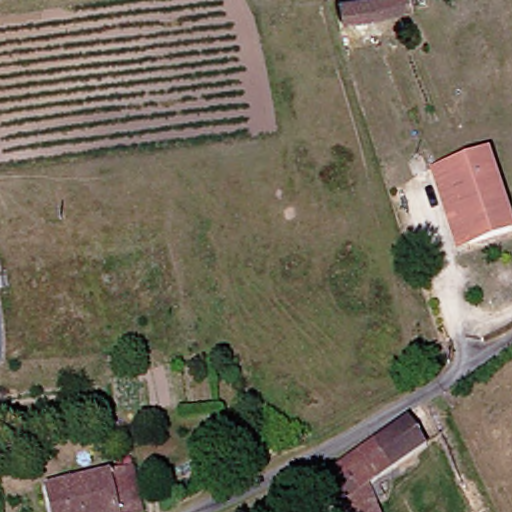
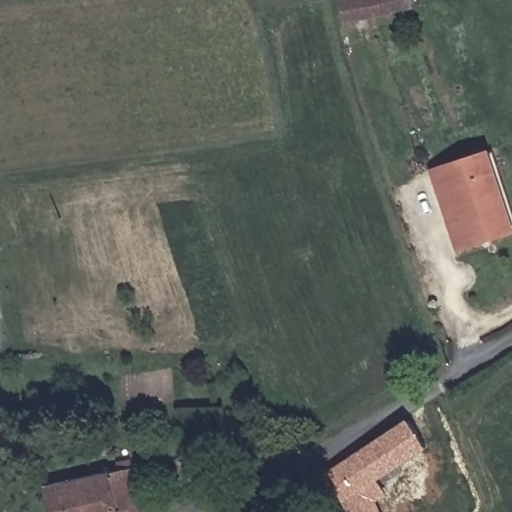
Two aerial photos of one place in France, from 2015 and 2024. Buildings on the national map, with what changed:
unchanged [(413,11),(348,25),(342,4),(362,0),(410,0),(413,11)]
unchanged [(494,156),(512,210),(512,237),(477,248),(452,169),(494,156)]
unchanged [(464,252),(439,173),(452,169),(477,248),(464,252)]
unchanged [(335,478),(414,421),(433,447),(381,488),(356,505),(335,478)]
unchanged [(140,468),(146,512),(121,512),(116,474),(140,468)]
unchanged [(116,474),(121,512),(56,512),(52,489),(116,474)]
unchanged [(359,512),(356,505),(381,488),(390,512),(359,512)]

